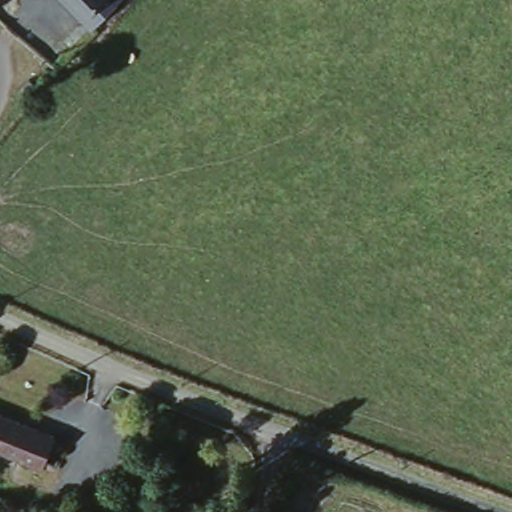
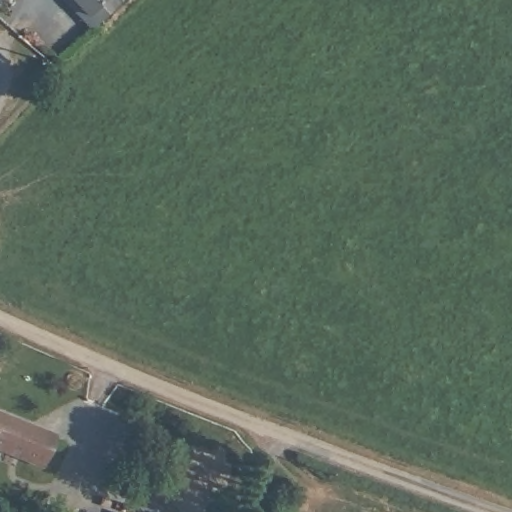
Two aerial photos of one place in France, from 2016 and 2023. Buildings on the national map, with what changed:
unchanged [(84,16),(69,0),(103,0),(84,16)]
unchanged [(44,474),(0,455),(0,417),(58,442),(44,474)]

